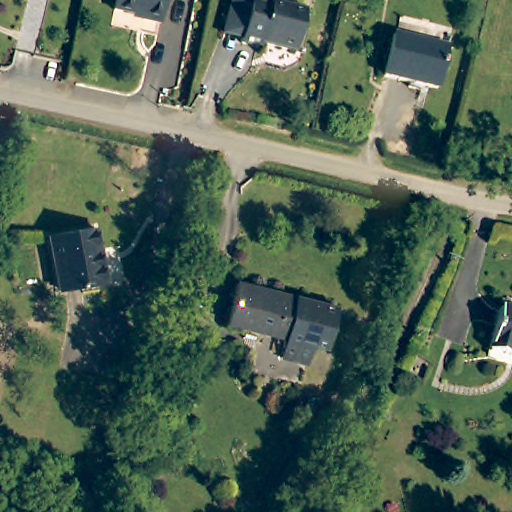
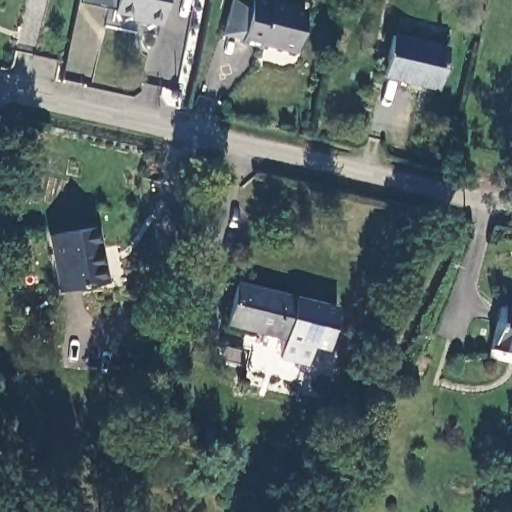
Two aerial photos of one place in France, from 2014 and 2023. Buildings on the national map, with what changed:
unchanged [(158,23),(139,19),(140,13),(112,7),(113,0),(163,0),(158,23)]
unchanged [(233,37),(244,2),(262,6),(263,1),(316,15),(306,54),(274,48),(272,52),(250,46),(251,41),(233,37)]
unchanged [(396,32),(452,45),(441,87),(387,74),(396,32)]
unchanged [(107,284),(62,297),(47,238),(92,225),(107,284)]
unchanged [(277,358),(283,338),(224,322),(236,279),(295,294),(336,307),(323,349),(307,345),(302,365),(277,358)]
unchanged [(504,304),(512,306),(512,355),(493,350),(504,304)]

